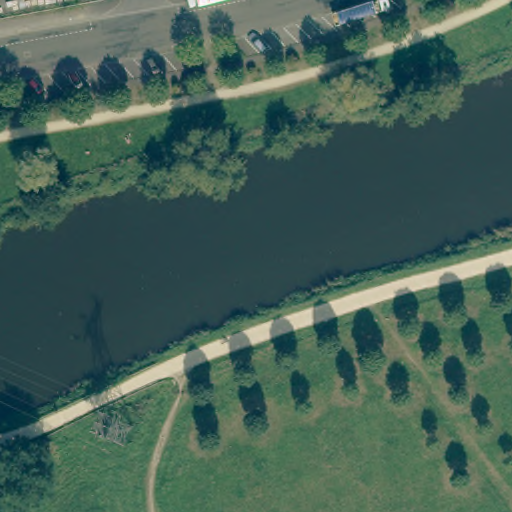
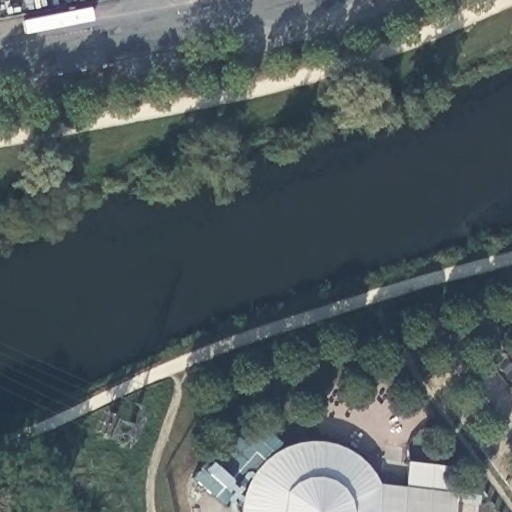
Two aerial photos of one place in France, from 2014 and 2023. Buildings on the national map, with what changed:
new [(241,440),(258,423),(285,447),(296,443),(316,442),(335,445),(353,453),(371,469),(379,484),(405,487),(407,462),(458,469),(453,512),(240,512),(240,502),(245,487),(242,483),(222,506),(192,478),(232,432),(241,440)]

